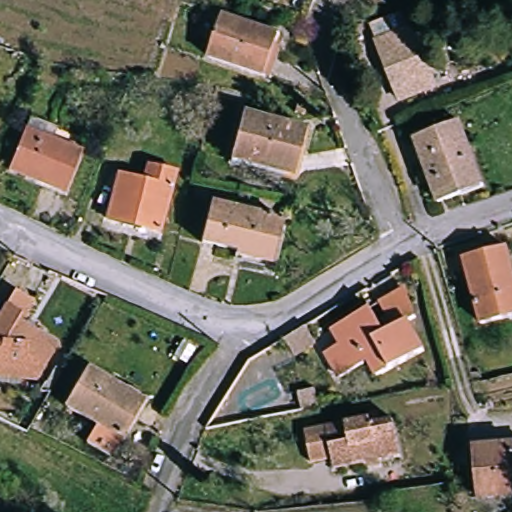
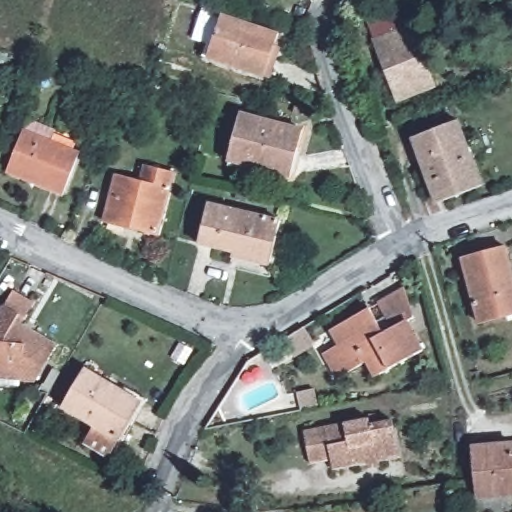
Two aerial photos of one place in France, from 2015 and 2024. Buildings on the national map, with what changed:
unchanged [(205,59),(223,13),(279,34),(259,77),(205,59)]
unchanged [(405,13),(426,78),(394,87),(374,22),(405,13)]
unchanged [(292,182),(227,166),(241,114),(305,129),(292,182)]
unchanged [(10,177),(25,130),(82,152),(65,199),(10,177)]
unchanged [(417,148),(461,134),(477,182),(433,197),(417,148)]
unchanged [(117,176),(138,182),(145,160),(158,165),(177,171),(159,236),(105,219),(117,176)]
unchanged [(268,273),(200,251),(208,205),(280,222),(268,273)]
unchanged [(507,249),(512,275),(512,310),(474,317),(463,257),(507,249)]
unchanged [(412,358),(392,372),(370,382),(361,369),(343,379),(329,356),(347,345),(337,331),(370,312),(383,332),(394,325),(375,300),(397,285),(414,309),(402,319),(420,352),(412,358)]
unchanged [(17,382),(7,383),(0,380),(0,313),(12,290),(31,297),(19,322),(60,344),(37,387),(30,385),(26,383),(17,382)]
unchanged [(144,397),(120,450),(97,441),(103,422),(67,407),(82,371),(144,397)]
unchanged [(328,470),(321,432),(360,423),(362,431),(380,427),(385,457),(328,470)]
unchanged [(480,500),(476,451),(512,448),(512,497),(480,500)]

